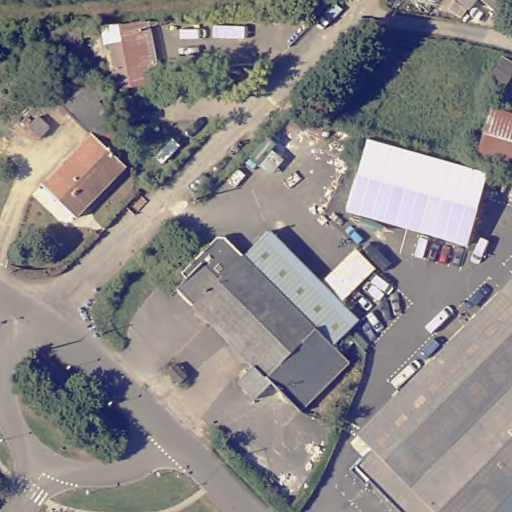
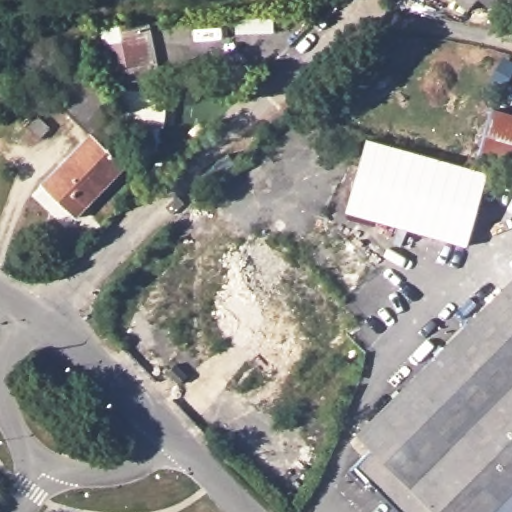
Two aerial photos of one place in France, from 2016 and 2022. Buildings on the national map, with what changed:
unchanged [(474,10),(461,0),(482,0),(482,1),(474,10)]
unchanged [(482,1),(482,0),(512,0),(512,3),(502,15),(482,1)]
unchanged [(512,6),(512,12),(509,10),(512,6)]
unchanged [(82,24),(83,49),(47,50),(47,27),(82,24)]
unchanged [(130,24),(134,40),(150,38),(153,84),(108,90),(103,25),(130,24)]
unchanged [(62,107),(92,77),(108,94),(99,103),(112,116),(105,124),(121,140),(110,152),(125,167),(75,217),(43,185),(91,136),(62,107)]
unchanged [(493,111),(512,117),(512,142),(486,135),(493,111)]
unchanged [(28,127),(38,117),(49,127),(39,138),(28,127)]
unchanged [(486,135),(512,142),(512,167),(478,157),(486,135)]
unchanged [(487,173),(467,250),(344,215),(365,140),(487,173)]
demolished [(337,347),(354,365),(306,413),(276,383),(260,398),(244,382),(259,367),(181,289),(191,279),(186,274),(223,237),(229,237),(248,256),(272,230),(363,320),(337,347)]
unchanged [(374,482),(369,487),(353,472),(376,450),(362,436),(512,287),(512,512),(403,512),(374,482)]
unchanged [(176,364),(187,376),(179,383),(168,372),(176,364)]

